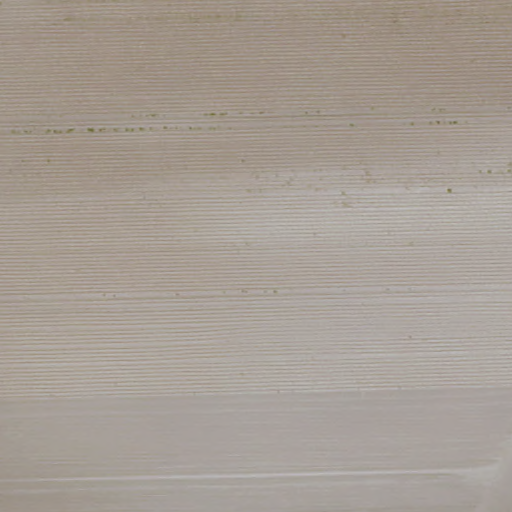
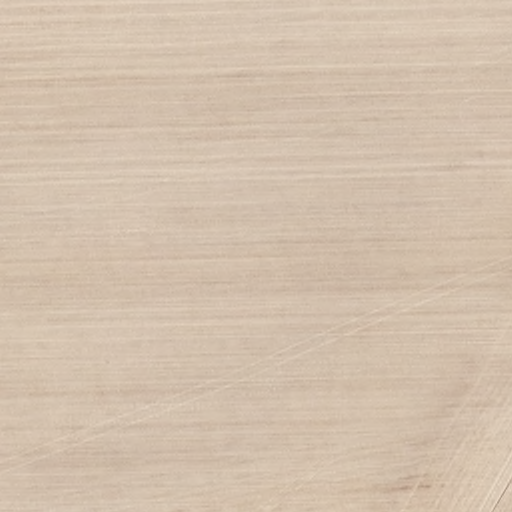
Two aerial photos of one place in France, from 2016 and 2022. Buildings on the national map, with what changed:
[]

